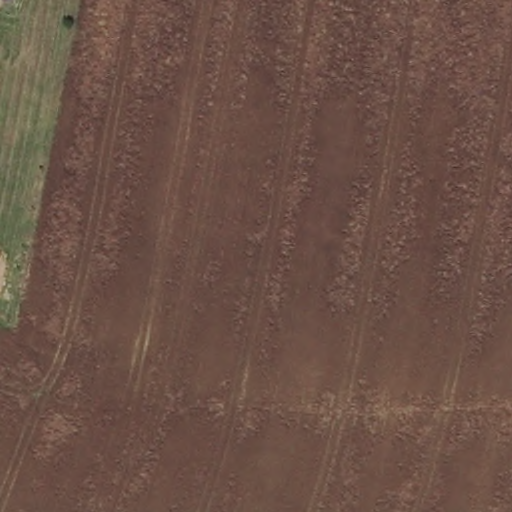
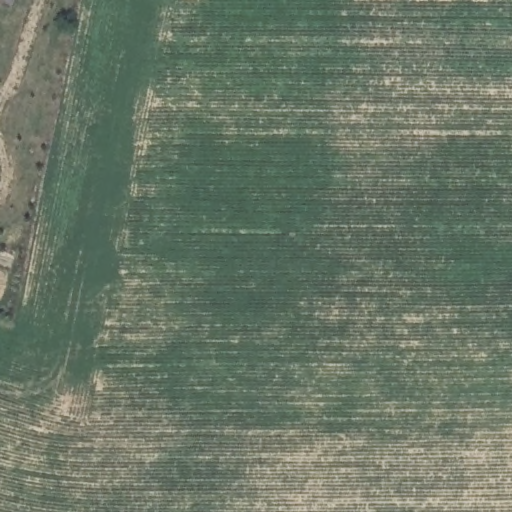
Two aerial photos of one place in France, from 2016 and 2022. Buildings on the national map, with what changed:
unchanged [(0,4),(0,0),(13,0),(10,8),(0,4)]

